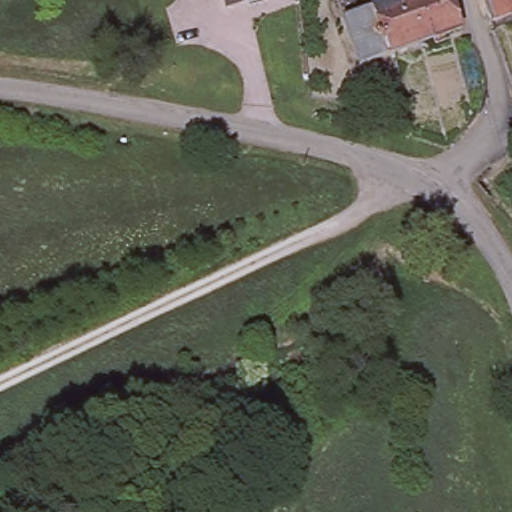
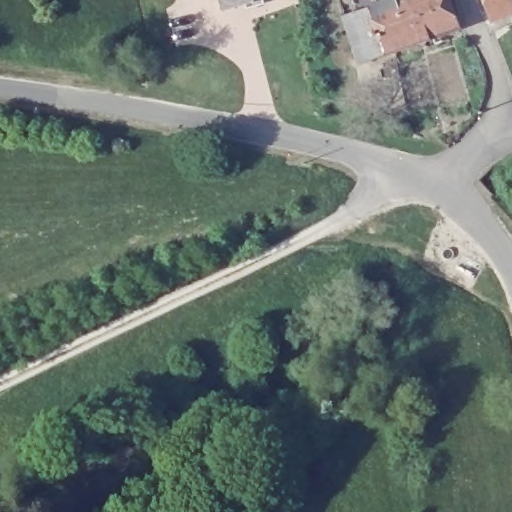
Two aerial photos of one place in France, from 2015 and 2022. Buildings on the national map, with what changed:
unchanged [(360,64),(343,16),(390,0),(452,0),(461,27),(360,64)]
unchanged [(484,0),(512,0),(512,14),(491,21),(484,0)]

